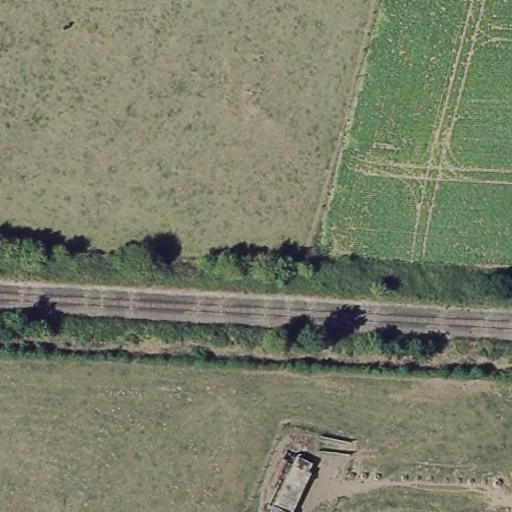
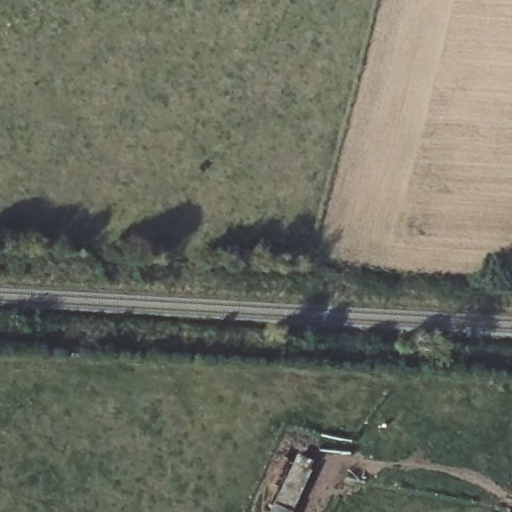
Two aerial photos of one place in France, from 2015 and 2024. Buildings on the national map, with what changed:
unchanged [(319,464),(297,512),(270,512),(297,454),(319,464)]

